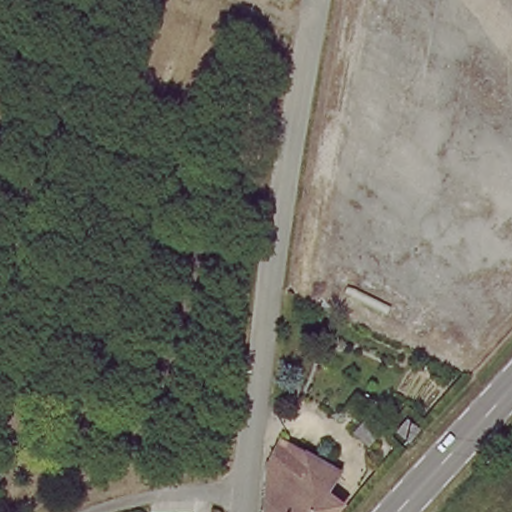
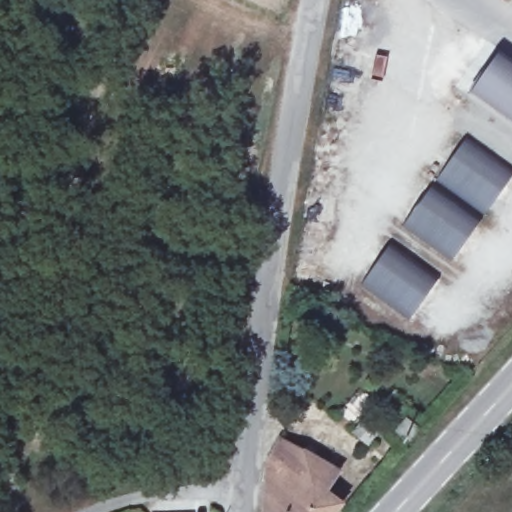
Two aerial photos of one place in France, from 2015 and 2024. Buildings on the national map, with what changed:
new [(500,54),(512,62),(512,124),(470,95),(500,54)]
new [(439,177),(466,140),(512,174),(512,176),(486,212),(439,177)]
new [(403,226),(432,187),(478,224),(451,263),(403,226)]
new [(410,318),(362,285),(389,247),(436,281),(410,318)]
unchanged [(352,431),(368,411),(387,429),(370,448),(352,431)]
unchanged [(287,439),(345,476),(332,496),(282,462),(287,439)]
unchanged [(344,503),(336,512),(270,512),(282,462),(332,496),(344,503)]

